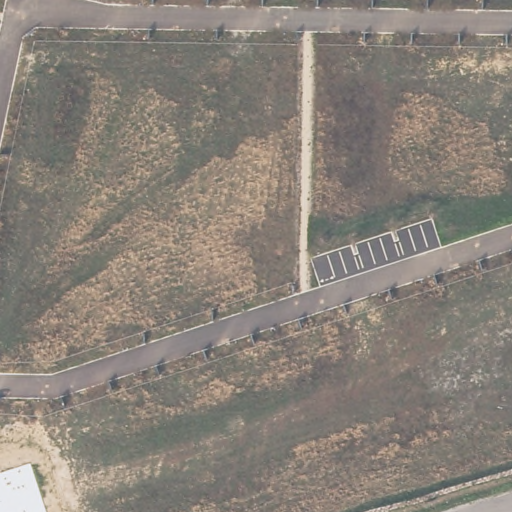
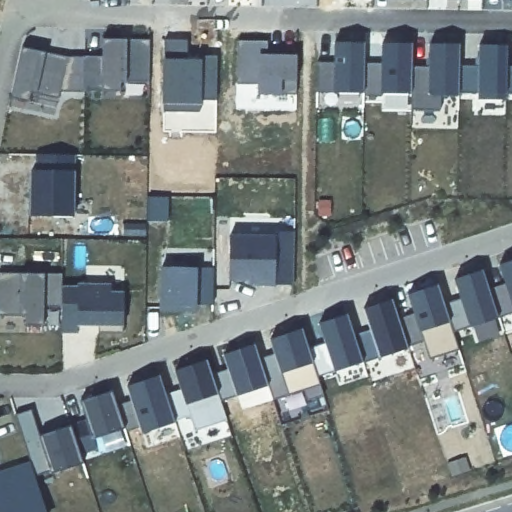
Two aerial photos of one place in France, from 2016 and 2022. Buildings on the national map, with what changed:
new [(100,55),(99,37),(124,38),(148,39),(146,83),(117,83),(117,91),(98,90),(100,94),(82,93),(81,56),(100,55)]
new [(334,39),(365,40),(364,63),(381,63),(380,40),(410,40),(410,65),(427,65),(428,42),(460,42),(460,63),(478,64),(478,42),(507,42),(505,64),(512,64),(512,95),(475,94),(455,95),(449,94),(452,109),(410,109),(408,92),(361,93),(331,92),(312,92),(313,62),(334,61),(334,39)]
new [(44,51),(63,55),(54,97),(34,93),(29,92),(26,103),(8,99),(20,47),(44,51)]
new [(73,153),(68,168),(73,168),(71,215),(28,215),(30,168),(32,152),(73,153)]
new [(272,232),(273,228),(292,229),(289,283),(274,283),(249,284),(249,279),(227,280),(227,233),(272,232)]
new [(408,292),(439,282),(445,300),(460,295),(454,277),(483,267),(488,284),(503,279),(498,263),(512,259),(512,312),(453,331),(458,349),(429,358),(423,340),(407,345),(397,317),(413,310),(408,292)]
new [(199,267),(211,265),(211,303),(195,305),(196,312),(158,311),(159,266),(199,267)]
new [(60,273),(59,284),(76,284),(76,282),(110,282),(109,289),(123,290),(122,325),(119,325),(119,334),(94,333),(93,326),(75,325),(76,332),(60,331),(59,307),(41,307),(42,324),(21,324),(20,315),(0,315),(0,272),(60,273)]
new [(273,351),(269,337),(302,326),(312,362),(309,363),(321,394),(306,399),(302,390),(270,398),(257,356),(273,351)]
new [(31,408),(36,434),(84,419),(78,400),(110,390),(115,402),(129,397),(125,384),(157,373),(164,392),(178,388),(171,369),(205,359),(216,392),(214,393),(224,419),(194,429),(190,415),(172,420),(139,431),(138,425),(122,431),(120,428),(90,439),(96,448),(79,452),(82,463),(48,475),(47,470),(33,474),(29,460),(14,413),(31,408)]
unchanged [(29,460),(46,512),(0,512),(0,471),(29,460)]

